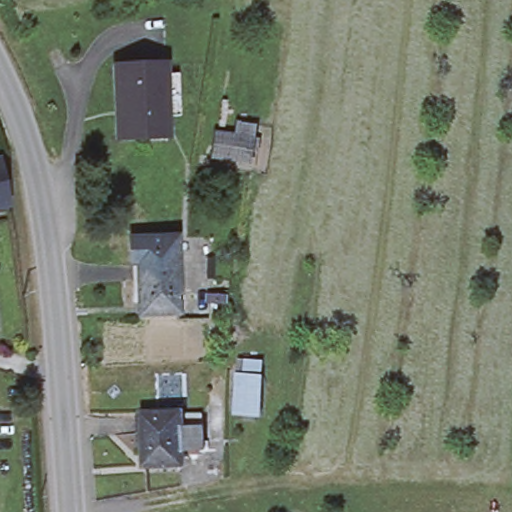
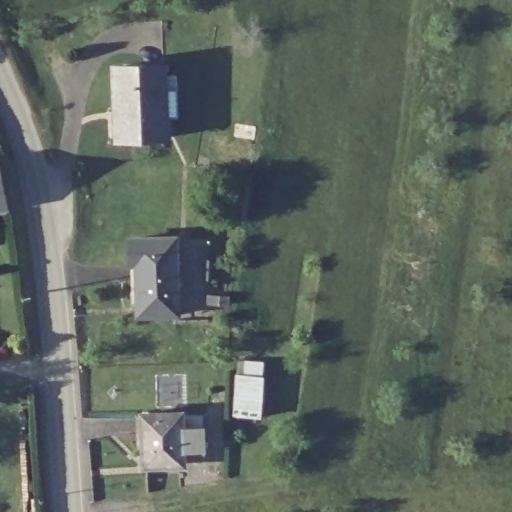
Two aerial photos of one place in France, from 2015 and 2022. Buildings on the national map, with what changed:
unchanged [(183,120),(170,120),(171,141),(123,143),(122,110),(118,110),(116,70),(167,68),(169,100),(182,100),(183,120)]
unchanged [(235,137),(237,125),(256,127),(251,166),(212,160),(215,135),(235,137)]
unchanged [(0,208),(0,173),(7,207),(0,208)]
unchanged [(131,270),(130,240),(176,239),(177,268),(174,268),(139,269),(131,270)]
unchanged [(139,283),(139,269),(174,268),(176,312),(140,314),(140,297),(132,297),(132,284),(139,283)]
unchanged [(235,412),(238,370),(243,371),(263,372),(261,413),(238,412),(235,412)]
unchanged [(147,462),(145,413),(180,411),(181,426),(204,425),(205,446),(182,447),(182,460),(147,462)]

